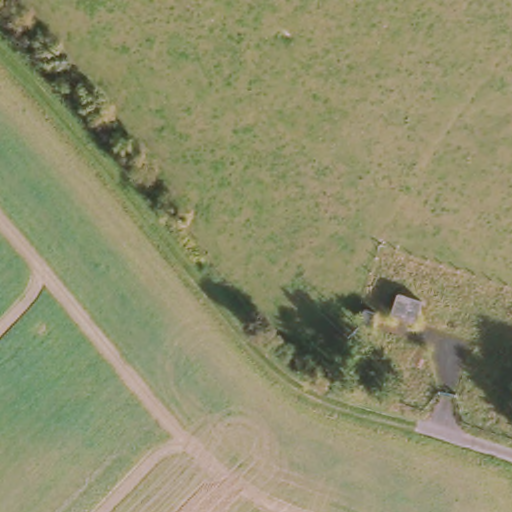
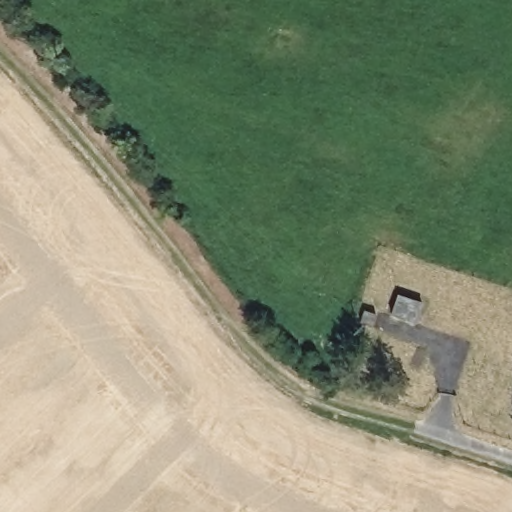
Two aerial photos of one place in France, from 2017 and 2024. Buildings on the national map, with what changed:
unchanged [(415,315),(389,313),(389,297),(416,294),(415,315)]

